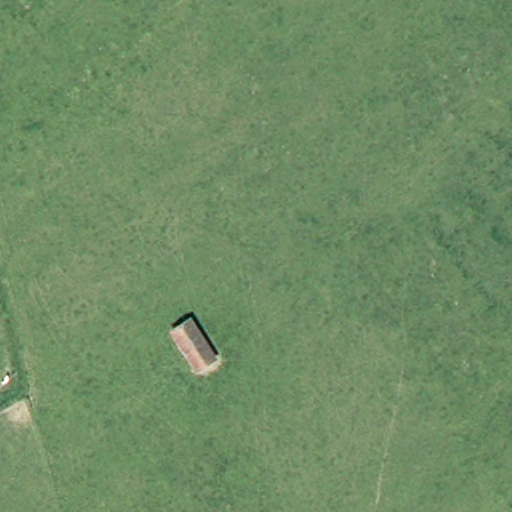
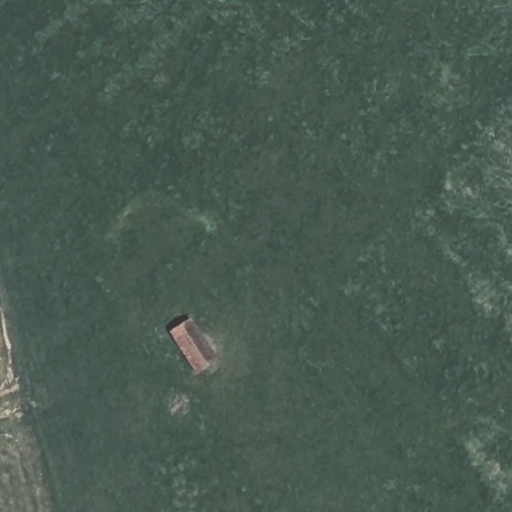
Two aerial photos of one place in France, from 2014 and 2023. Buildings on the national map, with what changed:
unchanged [(196,372),(166,330),(191,313),(218,357),(196,372)]

